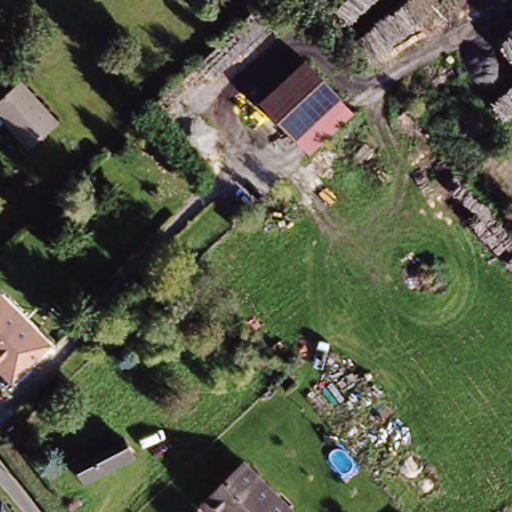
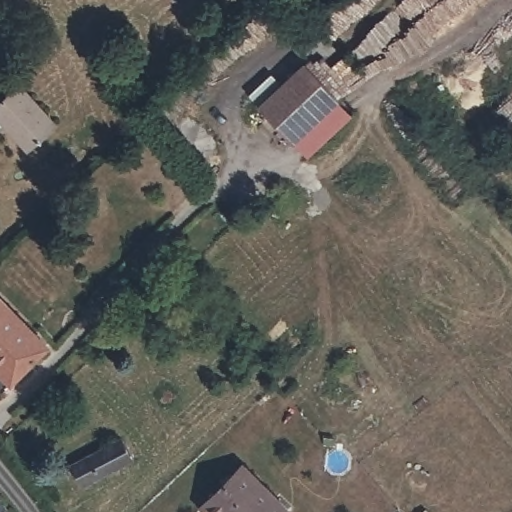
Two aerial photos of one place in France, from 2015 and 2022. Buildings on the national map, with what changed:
unchanged [(258,106),(309,60),(349,104),(301,145),(258,106)]
unchanged [(6,119),(0,113),(0,104),(18,86),(58,126),(29,154),(1,124),(6,119)]
unchanged [(5,298),(50,348),(17,377),(3,389),(0,386),(0,303),(5,298)]
unchanged [(125,434),(140,454),(94,488),(79,468),(125,434)]
unchanged [(211,498),(251,463),(290,507),(285,512),(212,512),(205,504),(211,498)]

